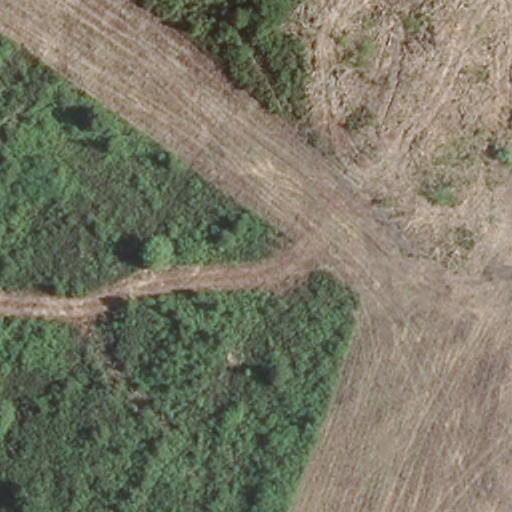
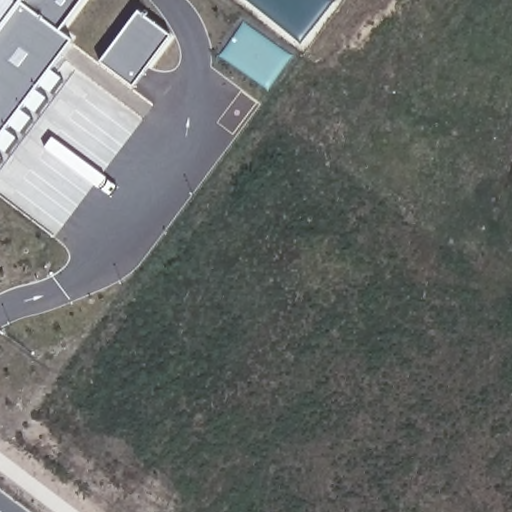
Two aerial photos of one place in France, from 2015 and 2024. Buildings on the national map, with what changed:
new [(72,41),(0,139),(0,0),(83,0),(61,32),(72,41)]
new [(132,89),(101,63),(139,12),(172,37),(132,89)]

